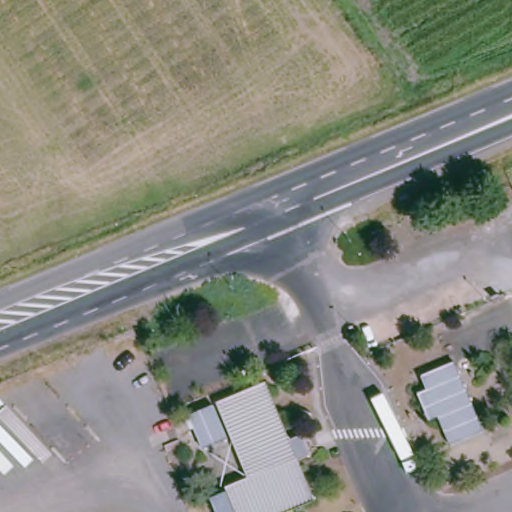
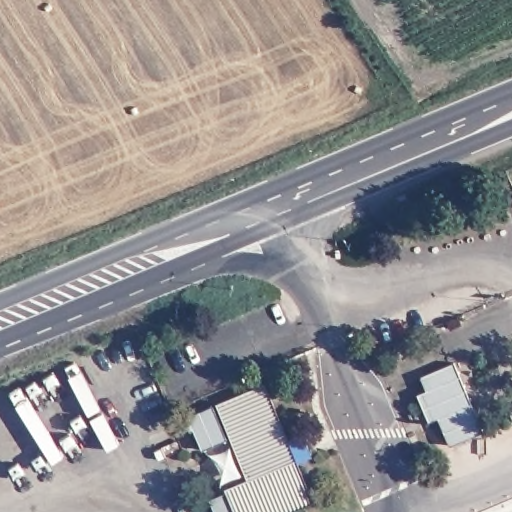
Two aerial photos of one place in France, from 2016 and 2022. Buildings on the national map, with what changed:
unchanged [(438,417),(417,393),(427,389),(421,375),(455,362),(483,431),(450,445),(438,417)]
unchanged [(312,505),(294,512),(235,512),(227,495),(257,482),(241,443),(234,445),(217,409),(262,389),(312,505)]

